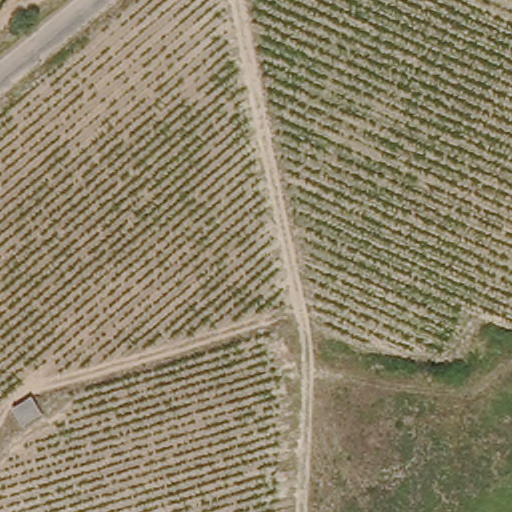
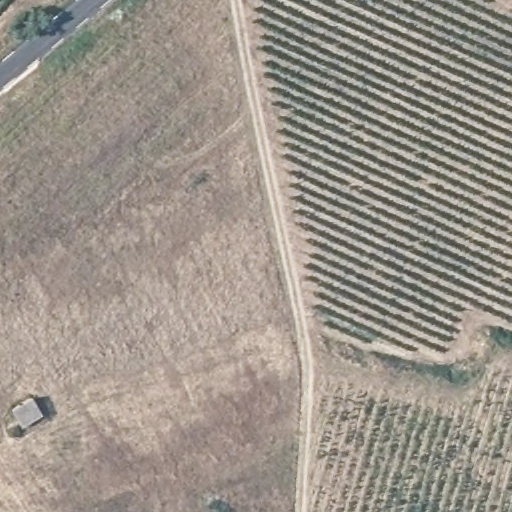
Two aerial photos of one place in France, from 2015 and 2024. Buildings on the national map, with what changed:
unchanged [(25,423),(11,405),(33,391),(45,409),(25,423)]

